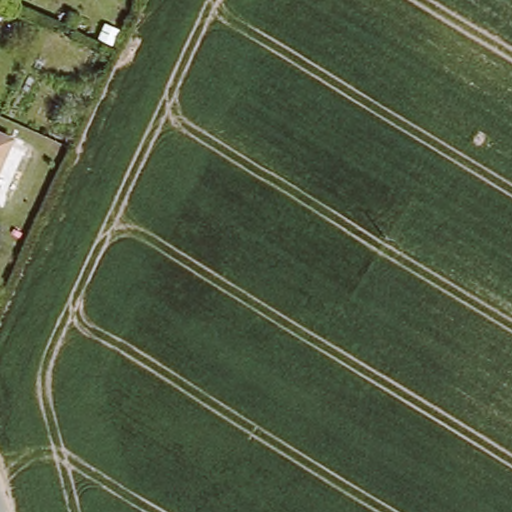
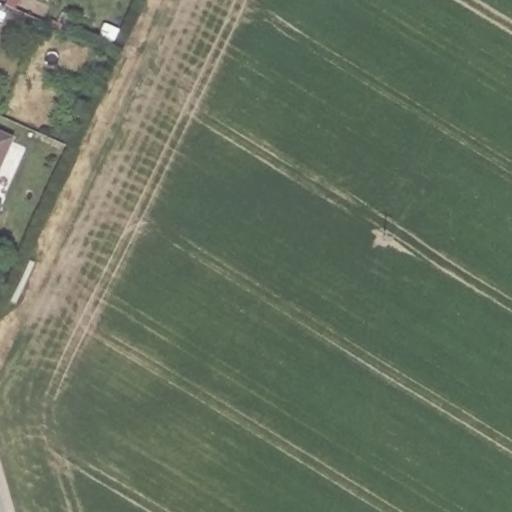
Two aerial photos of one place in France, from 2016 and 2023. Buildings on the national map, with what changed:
unchanged [(17,5),(6,28),(0,25),(0,0),(4,0),(17,5)]
unchanged [(20,137),(0,178),(0,128),(20,137)]

